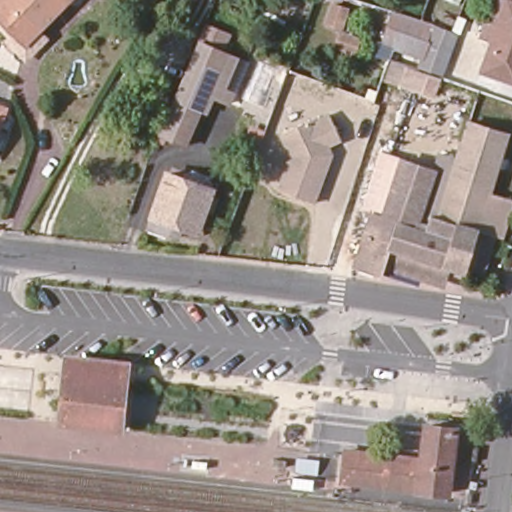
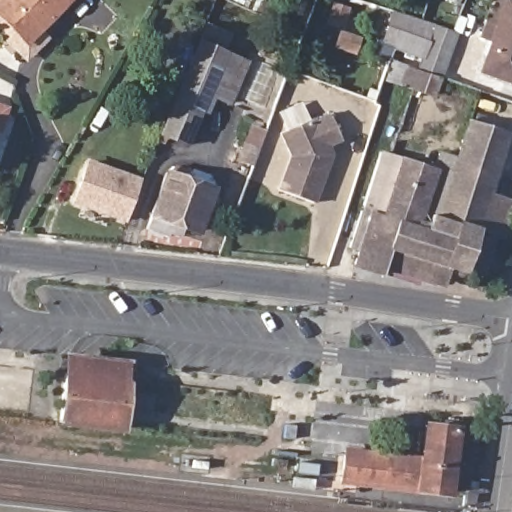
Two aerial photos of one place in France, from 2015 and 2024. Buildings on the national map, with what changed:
unchanged [(28,42),(0,15),(0,0),(41,0),(55,13),(28,42)]
unchanged [(41,0),(68,0),(55,13),(41,0)]
unchanged [(488,74),(497,45),(486,41),(500,0),(505,0),(512,3),(512,82),(488,74)]
unchanged [(332,48),(337,30),(326,26),(332,1),(355,7),(347,31),(362,36),(356,56),(332,48)]
unchanged [(418,90),(423,72),(397,63),(379,56),(393,11),(426,22),(440,26),(460,33),(453,49),(446,71),(450,72),(447,79),(447,80),(441,98),(418,90)]
unchanged [(200,45),(244,65),(231,96),(238,100),(234,111),(207,99),(186,149),(167,140),(165,144),(159,141),(200,45)]
demolished [(10,114),(3,135),(0,134),(0,104),(12,108),(10,114)]
unchanged [(0,107),(3,108),(1,115),(0,117),(0,107)]
unchanged [(288,135),(322,120),(324,123),(337,117),(348,142),(335,148),(335,150),(331,162),(333,163),(320,204),(287,192),(298,158),(288,135)]
unchanged [(255,164),(239,159),(250,122),(267,128),(255,164)]
unchanged [(378,205),(391,160),(437,173),(442,156),(459,161),(462,152),(472,123),(510,137),(492,195),(512,202),(512,221),(507,241),(497,239),(487,276),(468,271),(467,274),(450,269),(446,280),(388,263),(385,276),(358,269),(369,233),(352,229),(359,206),(376,211),(378,205)]
new [(144,177),(127,223),(75,203),(90,159),(144,177)]
unchanged [(252,169),(250,174),(243,171),(245,167),(252,169)]
unchanged [(167,181),(183,187),(186,182),(192,178),(210,185),(211,192),(210,197),(212,198),(197,238),(152,221),(167,181)]
unchanged [(65,364),(127,371),(121,422),(57,415),(65,364)]
unchanged [(420,461),(425,427),(453,430),(446,495),(342,483),(346,452),(420,461)]

